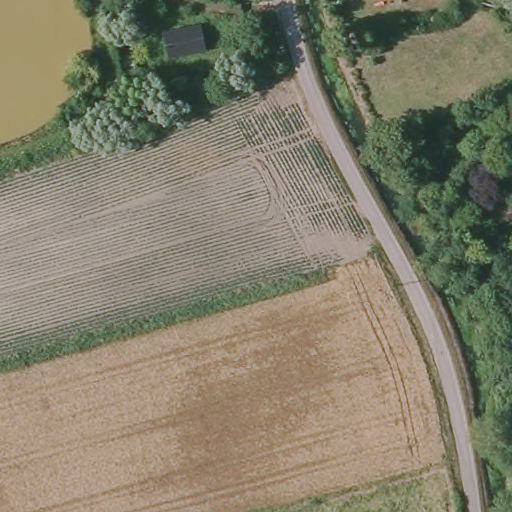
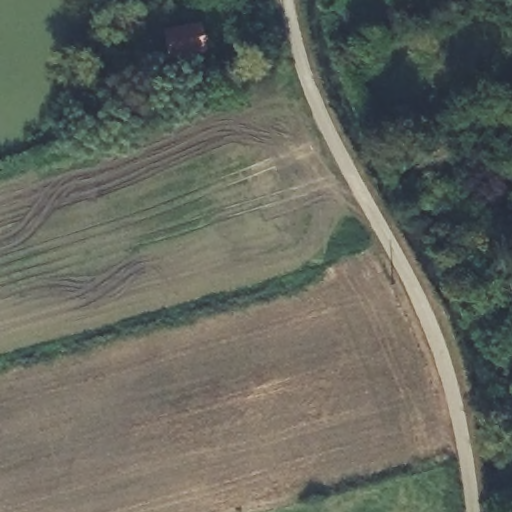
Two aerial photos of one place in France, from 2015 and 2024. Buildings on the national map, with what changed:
unchanged [(200,23),(205,51),(168,57),(163,29),(200,23)]

